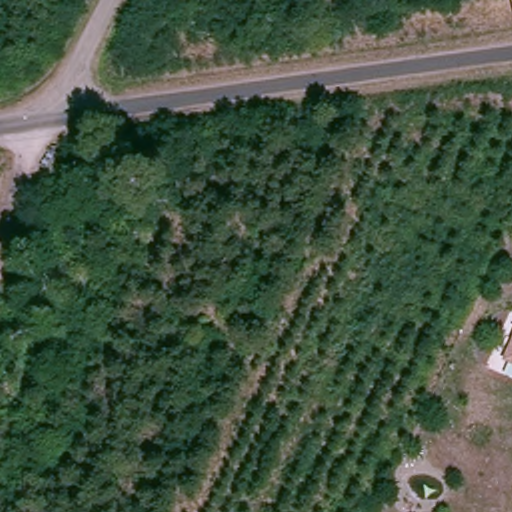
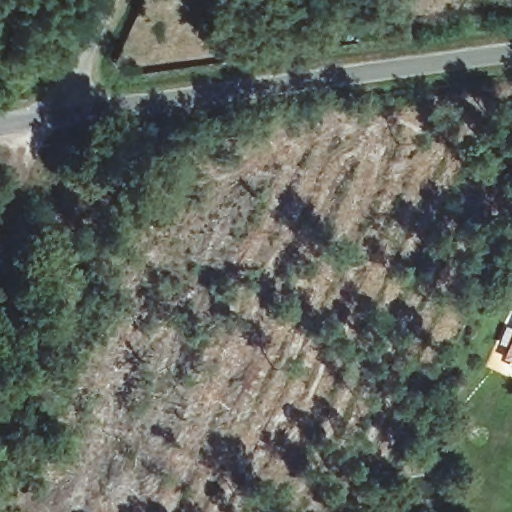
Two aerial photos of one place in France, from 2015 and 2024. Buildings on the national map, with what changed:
unchanged [(504,363),(512,344),(512,366),(504,363)]

